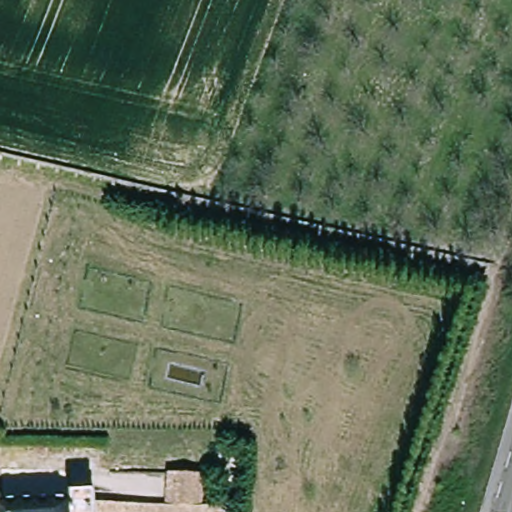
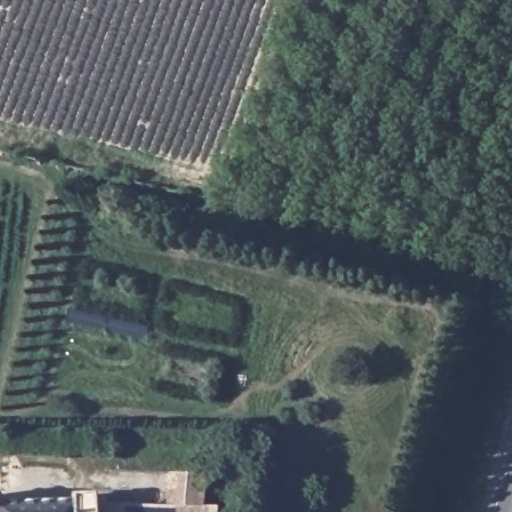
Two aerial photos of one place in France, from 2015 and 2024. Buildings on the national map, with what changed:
unchanged [(213,478),(212,510),(226,511),(226,512),(0,512),(0,500),(7,502),(82,505),(83,500),(104,500),(104,505),(177,508),(179,477),(213,478)]

